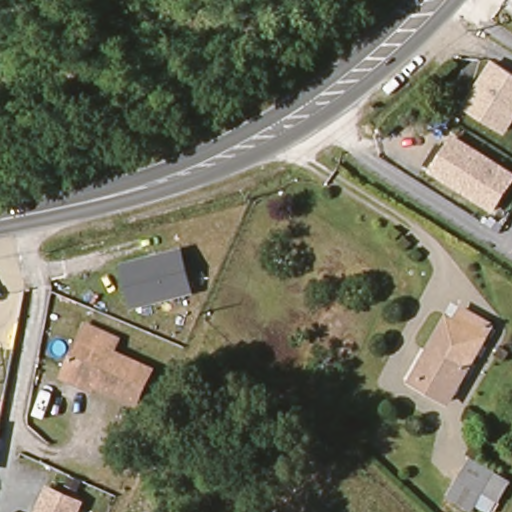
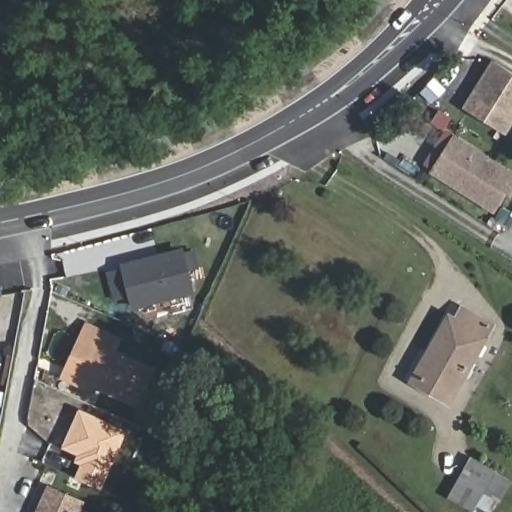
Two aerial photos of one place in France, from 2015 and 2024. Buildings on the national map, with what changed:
unchanged [(512,127),(507,135),(463,110),(492,60),(512,72),(512,127)]
unchanged [(512,170),(512,183),(494,215),(429,174),(455,134),(512,170)]
unchanged [(192,295),(130,310),(119,262),(181,247),(192,295)]
unchanged [(428,348),(448,312),(458,319),(466,306),(495,324),(448,405),(417,386),(410,382),(428,348)]
unchanged [(66,377),(72,366),(94,321),(126,335),(117,350),(156,370),(139,403),(107,388),(109,384),(100,380),(95,391),(66,377)]
new [(101,490),(75,478),(80,465),(73,462),(75,453),(62,448),(69,431),(79,409),(127,430),(101,490)]
unchanged [(2,425),(0,438),(0,424),(2,425)]
unchanged [(470,463),(510,487),(498,511),(457,487),(470,463)]
unchanged [(46,485),(85,502),(81,512),(34,512),(46,485)]

